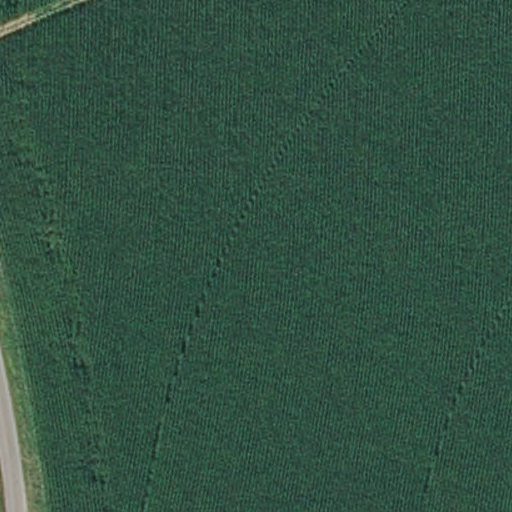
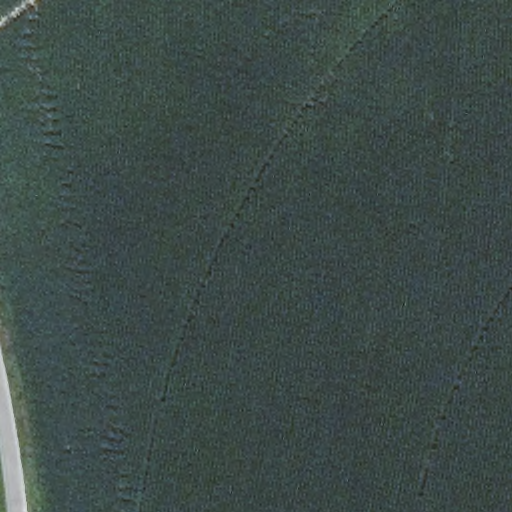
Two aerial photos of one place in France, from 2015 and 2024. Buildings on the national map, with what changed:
[]

